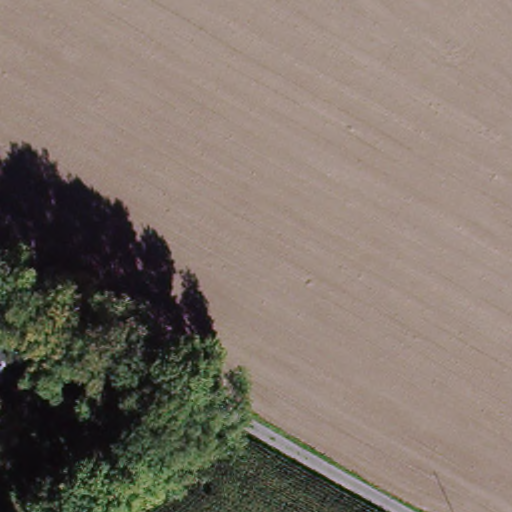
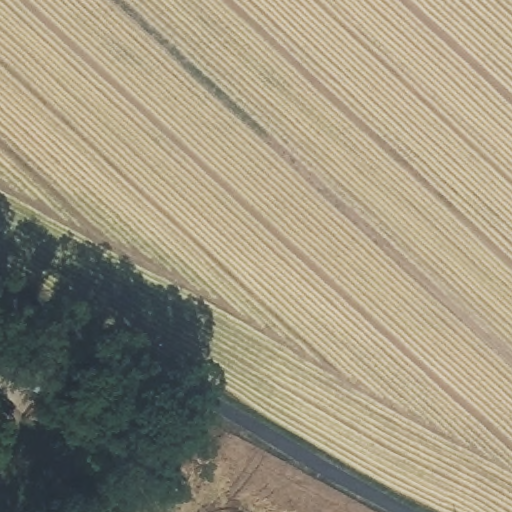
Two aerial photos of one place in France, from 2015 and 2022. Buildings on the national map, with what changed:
unchanged [(29,387),(0,373),(0,326),(48,350),(29,387)]

